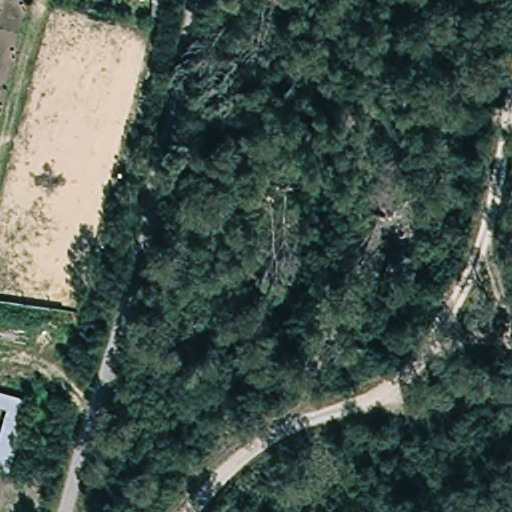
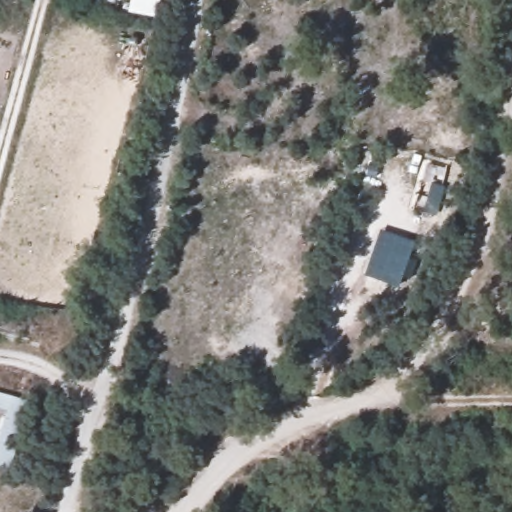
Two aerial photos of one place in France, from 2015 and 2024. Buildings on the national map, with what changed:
new [(163,18),(127,12),(130,0),(166,0),(163,18)]
new [(380,229),(415,240),(398,287),(365,275),(380,229)]
demolished [(411,253),(399,282),(381,275),(395,245),(411,253)]
unchanged [(31,403),(13,477),(0,474),(0,392),(31,403)]

